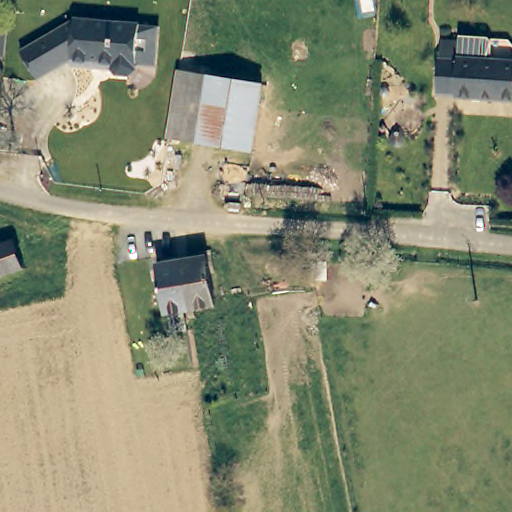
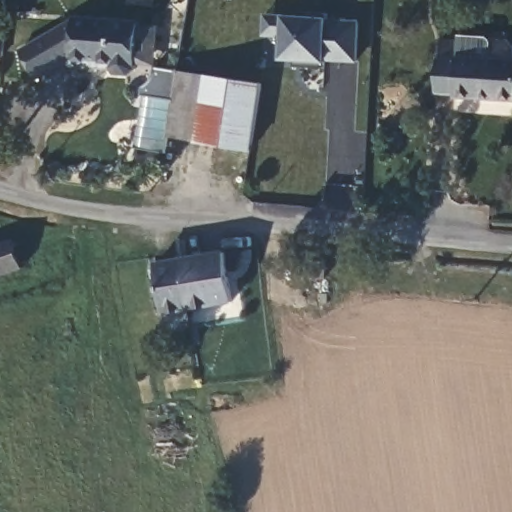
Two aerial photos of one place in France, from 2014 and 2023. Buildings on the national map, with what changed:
new [(358,62),(327,60),(325,68),(295,67),(297,60),(281,59),(283,37),(263,36),(264,14),(284,15),(311,17),(309,12),(327,14),(328,18),(360,21),(358,62)]
unchanged [(73,60),(73,55),(38,72),(24,44),(78,15),(78,14),(141,21),(141,22),(160,24),(156,62),(137,60),(136,67),(131,71),(117,70),(113,64),(94,62),(73,60)]
unchanged [(7,57),(6,62),(0,61),(0,33),(10,35),(7,57)]
unchanged [(485,39),(488,42),(488,58),(512,59),(512,99),(456,99),(456,94),(437,93),(438,42),(457,43),(457,38),(485,39)]
unchanged [(258,82),(247,148),(164,135),(165,132),(175,69),(258,82)]
unchanged [(21,265),(0,271),(0,240),(12,237),(21,265)]
unchanged [(206,256),(214,302),(189,307),(180,259),(206,256)]
unchanged [(189,307),(162,312),(153,262),(180,259),(189,307)]

